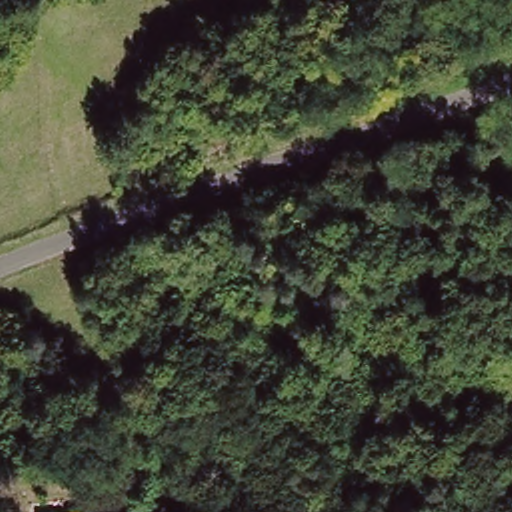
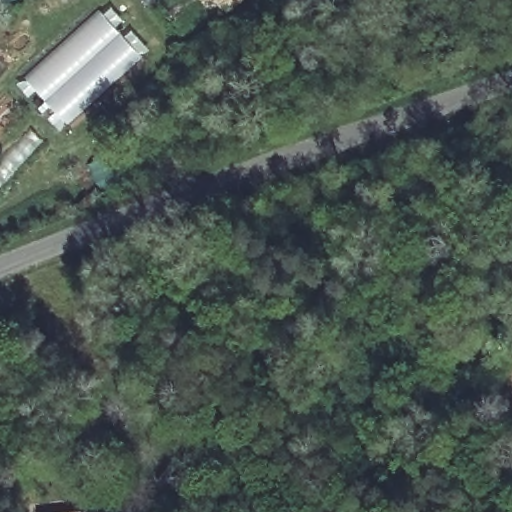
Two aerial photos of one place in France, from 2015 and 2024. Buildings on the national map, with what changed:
new [(99,9),(104,14),(110,7),(149,50),(67,125),(22,77),(99,9)]
unchanged [(82,512),(67,512),(81,509),(82,512)]

